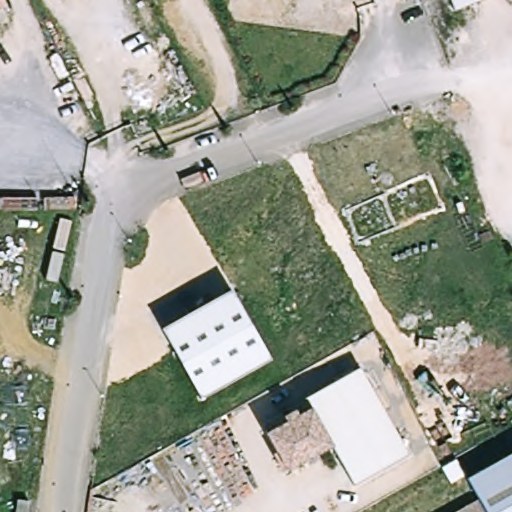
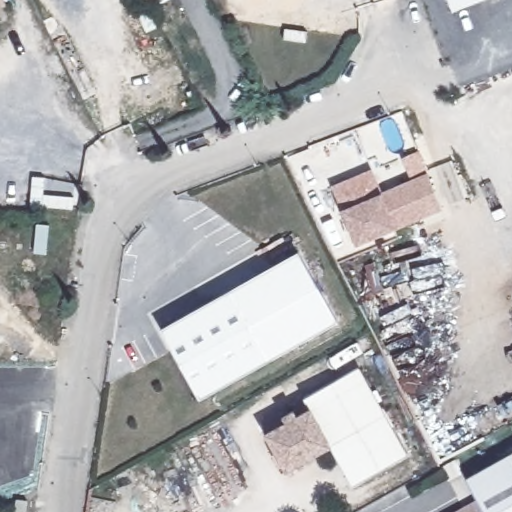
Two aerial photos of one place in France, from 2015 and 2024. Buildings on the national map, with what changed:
unchanged [(0,8),(0,0),(5,0),(8,5),(0,8)]
unchanged [(448,0),(479,0),(452,10),(448,0)]
new [(444,210),(398,230),(396,225),(382,192),(428,173),(444,210)]
new [(382,192),(396,225),(357,241),(344,208),(382,192)]
new [(339,321),(271,357),(231,288),(299,251),(339,321)]
unchanged [(231,288),(271,357),(201,397),(161,327),(231,288)]
unchanged [(359,367),(408,454),(353,484),(331,445),(307,403),(304,397),(359,367)]
unchanged [(277,451),(264,427),(307,403),(331,445),(316,452),(286,469),(277,451)]
unchanged [(497,465),(488,470),(487,470),(481,460),(482,459),(503,447),(509,458),(497,465)]
unchanged [(478,504),(466,482),(487,470),(497,465),(509,458),(512,456),(512,512),(483,512),(478,504)]
unchanged [(20,499),(30,501),(28,512),(17,512),(20,499)]
unchanged [(478,504),(483,512),(463,512),(478,504)]

